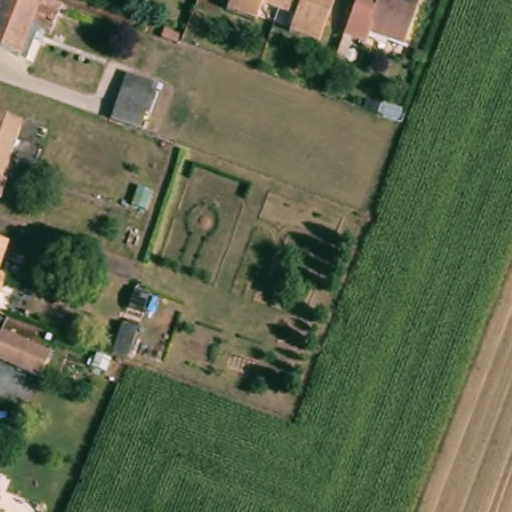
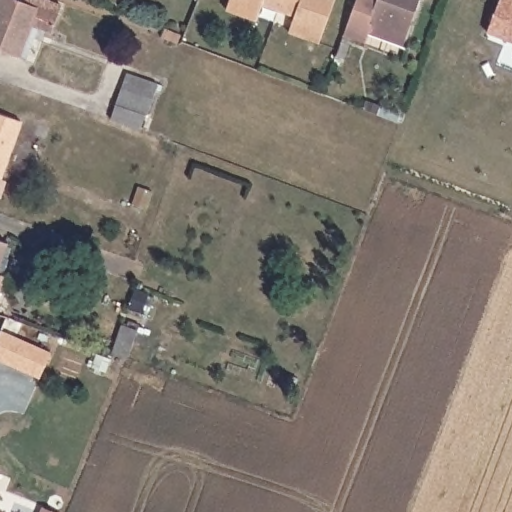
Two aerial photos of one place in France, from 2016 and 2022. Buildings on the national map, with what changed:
unchanged [(18,62),(0,55),(0,0),(7,0),(22,6),(25,0),(32,0),(49,6),(49,8),(61,13),(51,37),(39,33),(25,65),(18,62)]
unchanged [(315,44),(285,33),(291,17),(258,5),(252,21),(222,10),(226,0),(332,0),(315,44)]
unchanged [(369,35),(366,42),(345,35),(358,0),(420,0),(407,36),(401,45),(369,35)]
new [(512,43),(486,34),(500,0),(512,0),(512,43)]
unchanged [(153,97),(140,132),(120,125),(107,120),(121,81),(140,89),(145,90),(144,93),(154,96),(153,97)]
unchanged [(19,133),(1,189),(0,189),(0,127),(19,133)]
unchanged [(5,248),(0,262),(0,246),(5,248)]
unchanged [(4,281),(0,290),(0,280),(4,281)]
unchanged [(36,378),(0,363),(0,333),(47,353),(36,378)]

